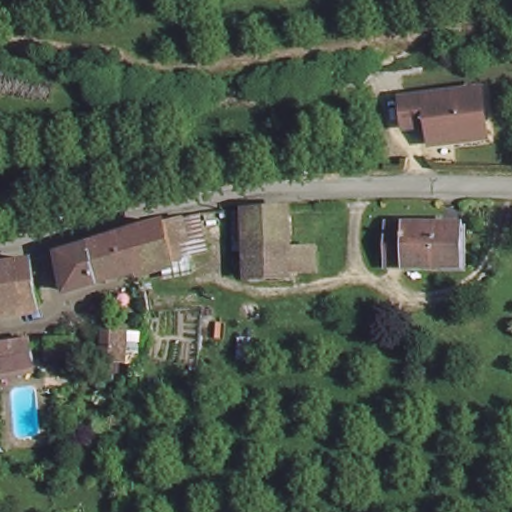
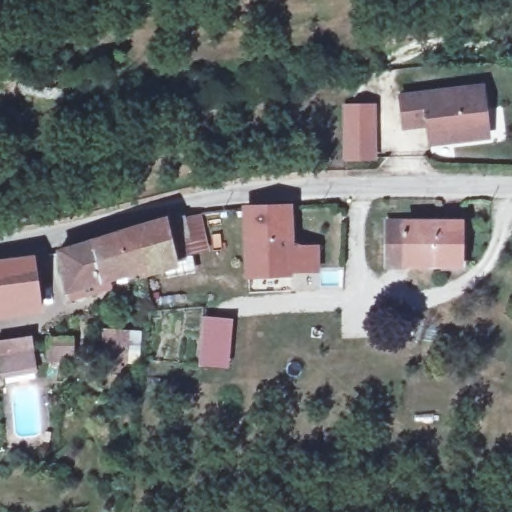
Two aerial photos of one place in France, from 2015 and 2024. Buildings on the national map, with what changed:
unchanged [(486,134),(430,140),(430,122),(402,124),(402,95),(485,87),(486,134)]
new [(377,102),(378,160),(342,161),(342,104),(377,102)]
unchanged [(293,262),(294,271),(255,278),(241,210),(261,207),(284,204),(293,262)]
unchanged [(461,265),(389,266),(388,218),(463,217),(461,265)]
unchanged [(153,220),(163,218),(170,266),(144,272),(135,224),(153,220)]
unchanged [(144,272),(70,287),(57,240),(135,224),(144,272)]
unchanged [(0,308),(0,255),(16,251),(27,301),(0,308)]
new [(230,368),(199,365),(204,316),(234,320),(230,368)]
unchanged [(133,325),(132,358),(103,358),(102,326),(133,325)]
unchanged [(76,360),(44,364),(5,369),(0,343),(0,340),(75,333),(76,360)]

